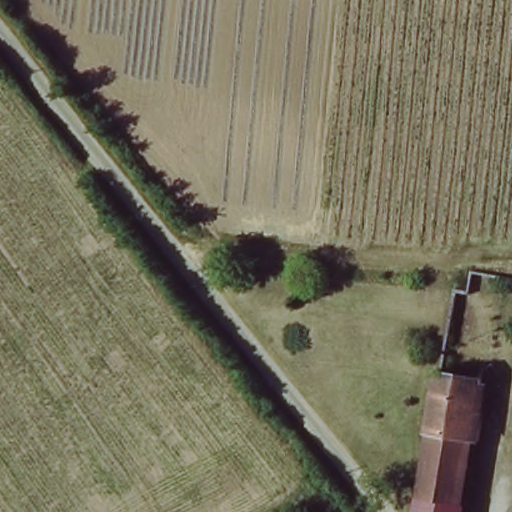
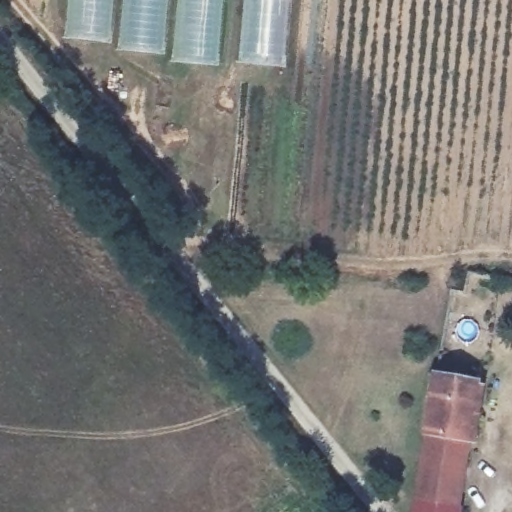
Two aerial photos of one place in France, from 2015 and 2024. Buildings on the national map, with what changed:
new [(173,63),(174,55),(120,52),(120,44),(65,39),(69,0),(226,0),(221,66),(173,63)]
unchanged [(415,495),(437,368),(484,377),(462,505),(415,495)]
unchanged [(462,505),(461,512),(412,512),(415,495),(462,505)]

